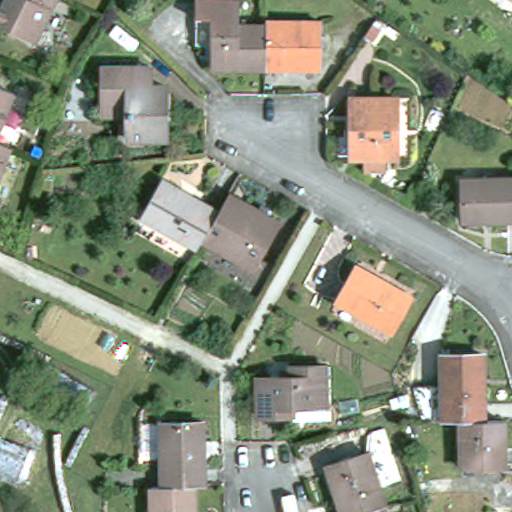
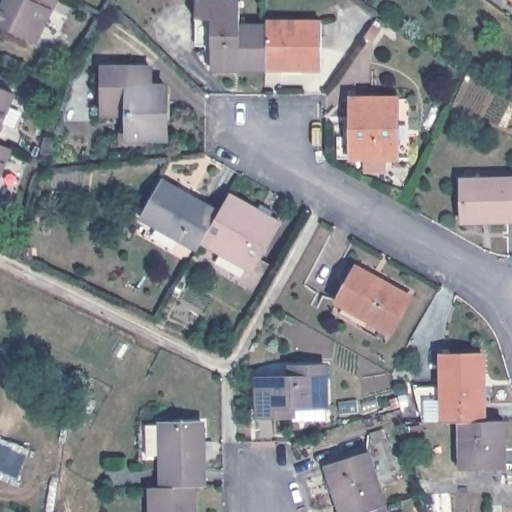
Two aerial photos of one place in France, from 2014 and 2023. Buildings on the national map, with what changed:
unchanged [(38,42),(0,23),(0,16),(8,0),(59,0),(38,42)]
unchanged [(212,68),(212,19),(197,19),(197,0),(227,0),(242,0),(241,24),(266,24),(268,69),(212,68)]
unchanged [(266,21),(323,21),(323,69),(268,69),(266,24),(266,21)]
unchanged [(152,66),(152,85),(169,85),(168,138),(144,138),(144,146),(121,145),(122,121),(129,121),(129,115),(104,115),(104,65),(152,66)]
unchanged [(17,93),(0,133),(0,86),(17,93)]
unchanged [(399,97),(399,158),(353,157),(352,97),(399,97)]
unchanged [(13,147),(0,178),(0,142),(13,147)]
unchanged [(464,179),(512,178),(512,219),(465,220),(464,179)]
unchanged [(149,217),(170,180),(219,209),(225,212),(207,242),(204,247),(149,217)]
unchanged [(225,212),(219,209),(232,187),(285,217),(255,269),(207,242),(225,212)]
unchanged [(413,297),(393,332),(338,300),(358,265),(413,297)]
unchanged [(443,354),(485,353),(485,421),(462,421),(443,421),(443,354)]
unchanged [(292,377),(292,367),(326,366),(328,405),(295,405),(295,414),(260,414),(258,378),(292,377)]
unchanged [(506,467),(462,466),(462,421),(485,421),(506,420),(506,467)]
unchanged [(159,486),(158,422),(199,421),(201,485),(191,485),(159,486)]
unchanged [(369,452),(371,432),(385,427),(402,479),(380,486),(369,452)]
unchanged [(369,452),(380,486),(387,504),(385,505),(364,512),(343,512),(328,465),(369,452)]
unchanged [(149,512),(148,486),(159,486),(191,485),(191,512),(149,512)]
unchanged [(387,512),(364,512),(385,505),(387,512)]

